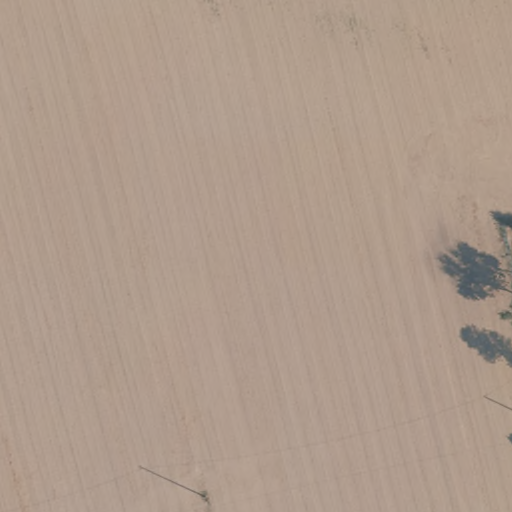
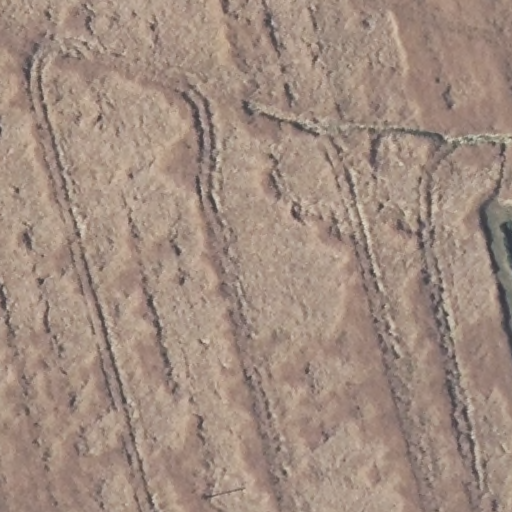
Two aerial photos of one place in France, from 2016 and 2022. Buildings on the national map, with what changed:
[]

